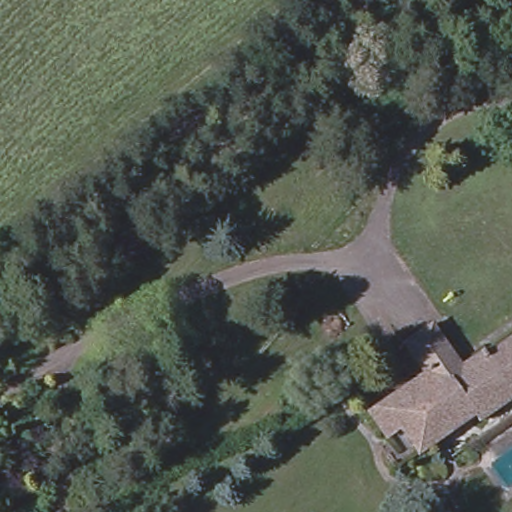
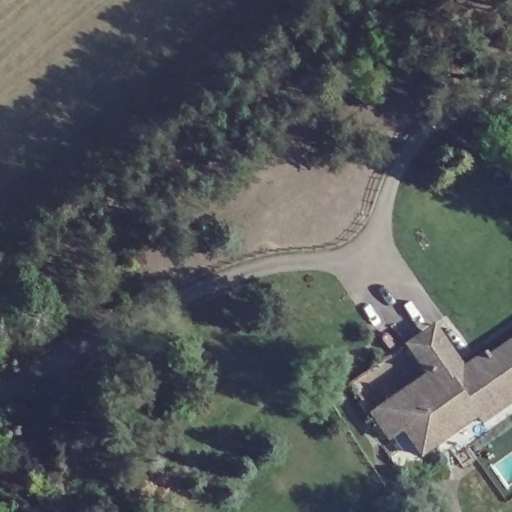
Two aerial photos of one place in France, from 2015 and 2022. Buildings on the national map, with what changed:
unchanged [(512,408),(485,427),(475,413),(442,436),(448,445),(425,461),(400,425),(385,435),(373,419),(430,380),(409,349),(425,338),(455,381),(487,360),(490,364),(512,349),(512,408)]

